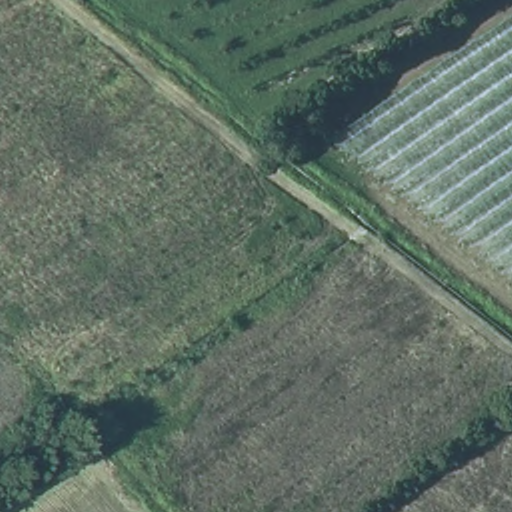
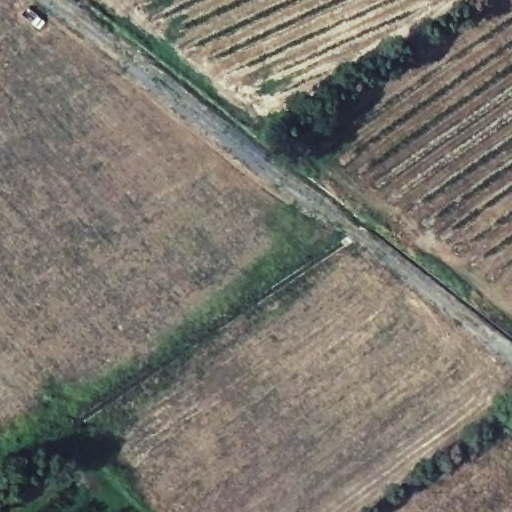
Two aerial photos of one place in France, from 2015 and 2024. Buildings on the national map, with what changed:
unchanged [(86,39),(100,49),(93,56),(80,45),(86,39)]

